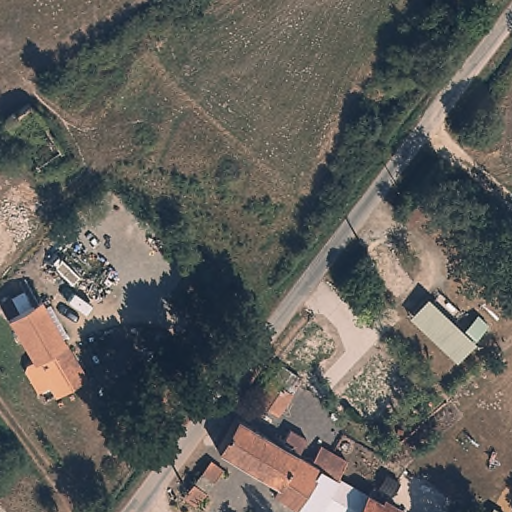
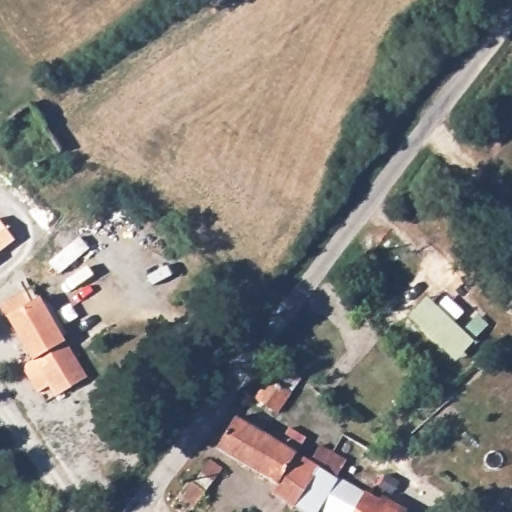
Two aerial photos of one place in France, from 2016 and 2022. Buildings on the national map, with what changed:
new [(15,240),(0,252),(0,220),(15,240)]
demolished [(5,251),(0,254),(0,244),(5,251)]
unchanged [(26,363),(26,362),(27,360),(30,356),(33,353),(38,353),(8,300),(26,287),(25,286),(24,283),(24,280),(27,278),(30,278),(41,298),(47,295),(92,378),(47,401),(32,375),(26,363)]
unchanged [(474,342),(456,361),(409,317),(427,298),(474,342)]
unchanged [(259,391),(275,368),(279,370),(279,369),(282,365),(285,365),(289,365),(293,369),(294,372),(293,376),(290,379),(294,385),(281,405),(259,391)]
unchanged [(223,467),(215,475),(209,470),(194,490),(184,481),(209,446),(213,449),(238,410),(297,447),(278,477),(226,448),(223,455),(218,463),(223,467)]
unchanged [(331,509),(320,502),(313,510),(295,498),(318,460),(310,455),(320,440),(333,449),(344,455),(339,471),(351,478),(404,512),(336,512),(331,509)]
unchanged [(310,455),(318,460),(295,498),(274,485),(278,477),(297,447),(310,455)]

